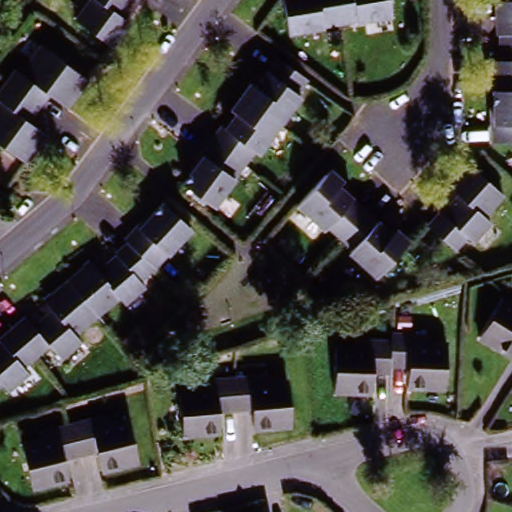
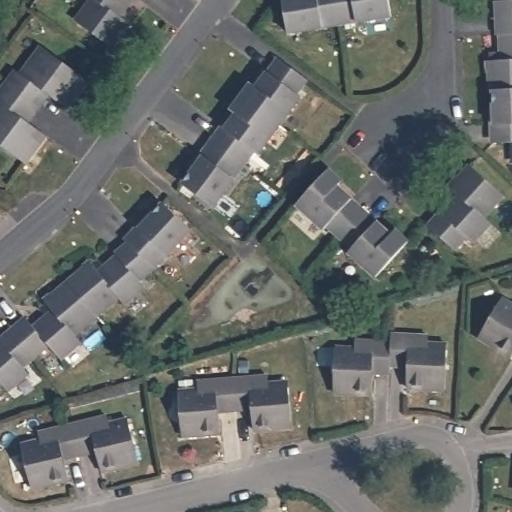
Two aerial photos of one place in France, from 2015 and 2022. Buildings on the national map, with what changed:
unchanged [(133,28),(115,49),(80,19),(96,0),(137,0),(122,19),(133,28)]
unchanged [(334,0),(338,25),(292,31),(288,0),(334,0)]
unchanged [(386,0),(389,17),(338,25),(334,0),(386,0)]
unchanged [(500,21),(498,5),(502,5),(502,0),(512,0),(512,20),(500,21)]
unchanged [(492,92),(491,63),(505,63),(504,40),(500,40),(500,21),(512,20),(512,92),(497,93),(492,92)]
unchanged [(72,114),(50,98),(39,111),(10,90),(22,75),(27,79),(50,51),(92,87),(72,114)]
unchanged [(235,95),(247,81),(252,84),(272,58),(298,80),(290,92),(295,96),(273,127),(235,95)]
unchanged [(28,124),(49,141),(29,168),(0,146),(0,115),(6,108),(1,103),(10,90),(39,111),(28,124)]
unchanged [(500,146),(497,93),(512,92),(512,146),(500,146)]
unchanged [(230,116),(223,109),(235,95),(273,127),(240,166),(210,142),(230,116)]
unchanged [(178,185),(210,142),(240,166),(210,208),(178,185)]
unchanged [(467,240),(454,254),(428,229),(457,199),(448,191),(467,169),(502,200),(482,223),(488,228),(472,245),(467,240)]
unchanged [(301,212),(335,174),(344,182),(338,188),(367,213),(341,242),(328,230),(325,234),(301,212)]
unchanged [(132,248),(165,210),(193,237),(158,274),(132,248)]
unchanged [(411,245),(380,282),(352,259),(357,255),(341,242),(367,213),(411,245)]
unchanged [(143,289),(147,294),(128,310),(122,302),(101,319),(72,287),(94,266),(105,277),(132,248),(158,274),(143,289)]
unchanged [(79,340),(85,349),(66,367),(53,352),(41,362),(18,336),(72,287),(101,319),(79,340)]
unchanged [(512,315),(512,362),(510,365),(479,344),(503,309),(512,315)]
unchanged [(41,362),(28,374),(34,382),(17,399),(9,390),(0,398),(0,352),(18,336),(41,362)]
unchanged [(397,336),(429,337),(432,344),(450,344),(448,392),(413,389),(413,368),(396,367),(397,344),(397,336)]
unchanged [(340,350),(360,351),(360,343),(397,344),(396,367),(396,381),(378,379),(377,396),(338,394),(340,350)]
unchanged [(235,382),(269,379),(270,389),(286,387),(292,431),(255,435),(252,416),(237,416),(235,382)]
unchanged [(220,436),(185,439),(180,396),(201,394),(202,386),(235,382),(237,416),(218,418),(220,436)]
unchanged [(110,419),(112,426),(132,423),(140,467),(106,474),(102,458),(84,462),(77,427),(110,419)]
unchanged [(25,447),(48,441),(47,433),(77,427),(84,462),(69,466),(72,482),(35,491),(25,447)]

